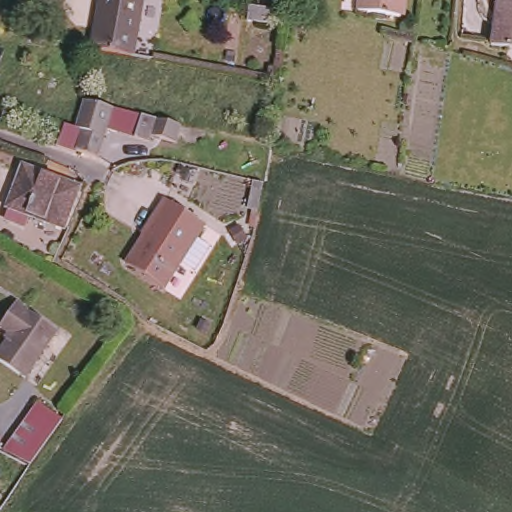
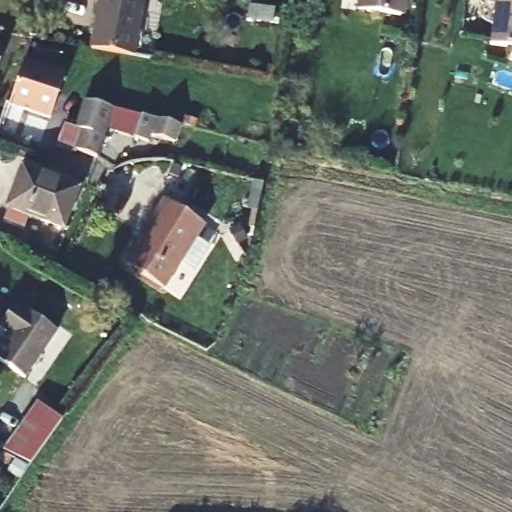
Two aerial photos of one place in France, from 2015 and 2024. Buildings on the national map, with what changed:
unchanged [(129,56),(89,49),(98,0),(140,0),(131,56),(129,56)]
unchanged [(355,13),(357,0),(399,0),(397,19),(355,13)]
unchanged [(501,2),(496,1),(496,0),(512,0),(512,49),(494,46),(501,2)]
unchanged [(274,11),(272,26),(248,23),(251,8),(274,11)]
unchanged [(8,53),(0,74),(0,73),(0,50),(8,53)]
new [(64,71),(49,119),(8,106),(24,59),(64,71)]
unchanged [(63,125),(73,129),(83,101),(110,109),(95,159),(75,151),(74,154),(56,148),(63,125)]
unchanged [(173,143),(151,136),(148,143),(133,138),(136,126),(129,124),(131,115),(139,116),(178,127),(173,143)]
unchanged [(21,229),(0,222),(19,173),(73,192),(59,232),(25,220),(21,229)]
unchanged [(152,213),(163,198),(201,222),(163,287),(125,266),(155,215),(152,213)]
unchanged [(6,330),(23,306),(64,333),(33,382),(3,362),(17,337),(6,330)]
unchanged [(40,403),(64,419),(33,464),(29,462),(11,453),(6,451),(40,403)]

